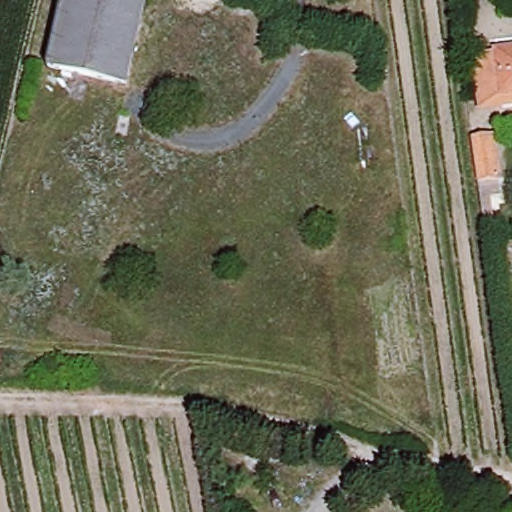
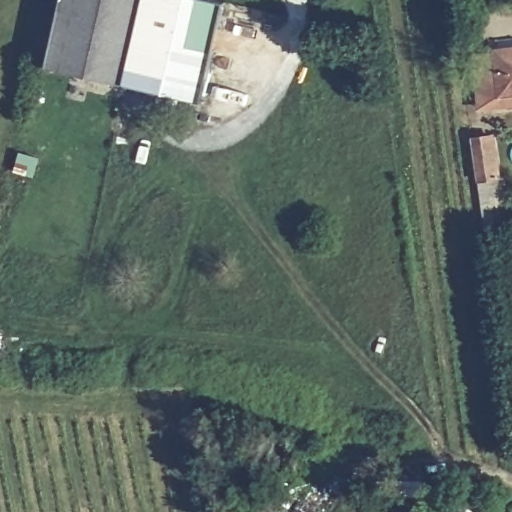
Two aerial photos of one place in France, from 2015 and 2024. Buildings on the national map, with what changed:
unchanged [(50,68),(66,0),(146,0),(126,86),(50,68)]
new [(126,86),(146,0),(223,0),(203,100),(126,86)]
unchanged [(512,51),(512,95),(505,96),(499,53),(512,51)]
unchanged [(499,53),(505,96),(507,107),(485,110),(478,57),(499,53)]
unchanged [(505,186),(479,190),(473,145),(498,141),(505,186)]

